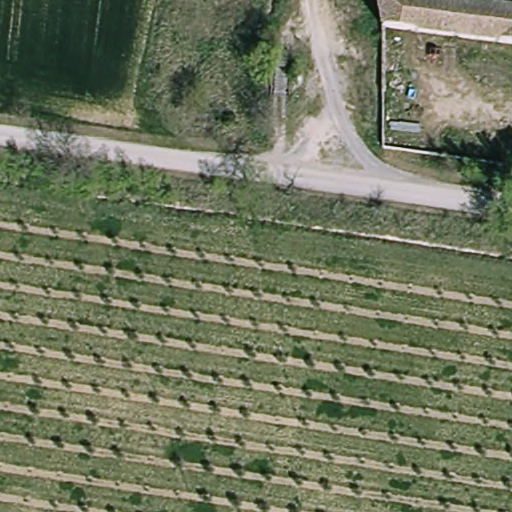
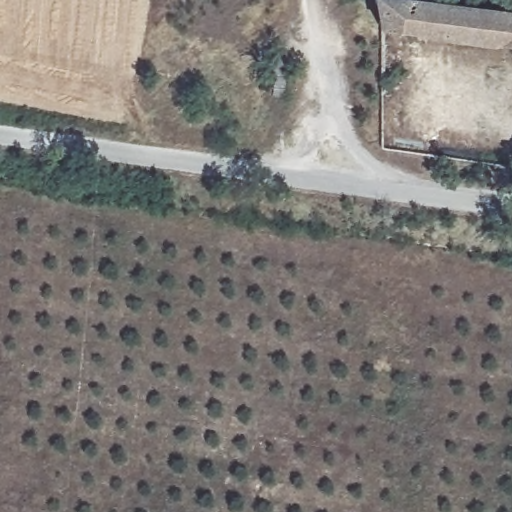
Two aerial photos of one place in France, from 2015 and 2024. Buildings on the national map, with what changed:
unchanged [(512,34),(377,17),(373,0),(492,0),(512,3),(512,34)]

